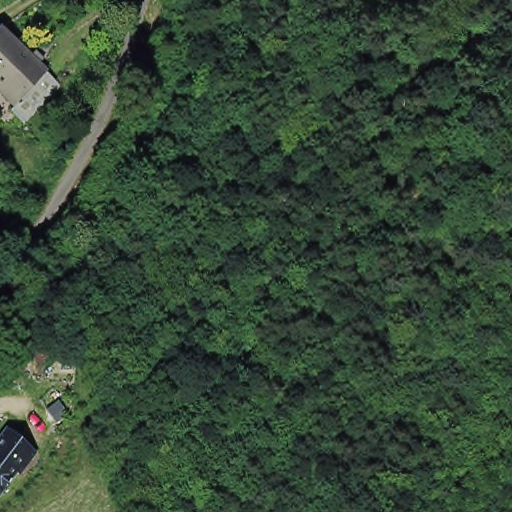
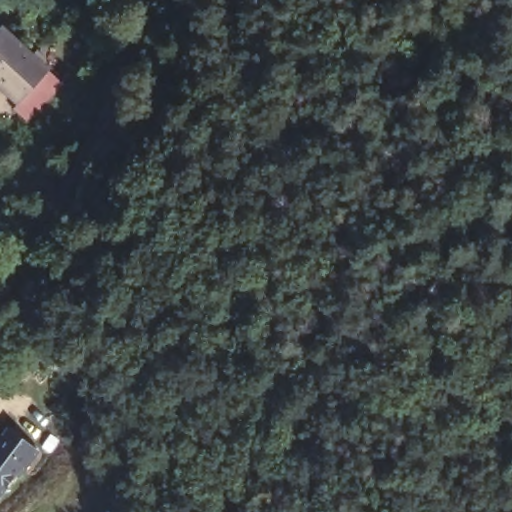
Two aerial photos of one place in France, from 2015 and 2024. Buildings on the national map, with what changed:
unchanged [(48,70),(19,105),(0,87),(0,29),(0,28),(48,70)]
unchanged [(29,483),(25,479),(15,492),(18,494),(11,501),(7,498),(0,507),(0,448),(14,431),(48,458),(29,483)]

